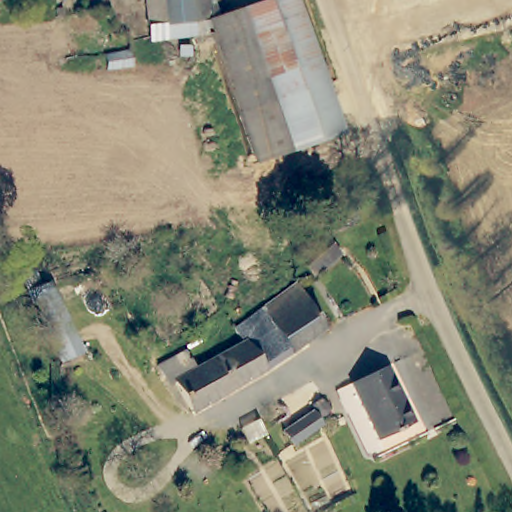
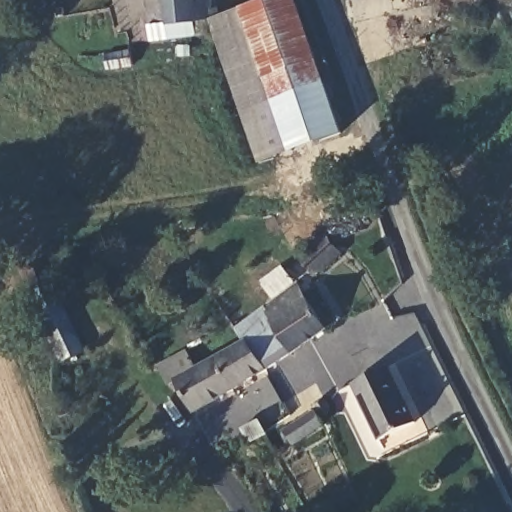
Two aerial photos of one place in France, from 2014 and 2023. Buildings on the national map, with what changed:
unchanged [(210,14),(194,16),(195,34),(152,38),(147,0),(209,0),(210,14)]
unchanged [(260,0),(294,0),(343,132),(296,150),(245,5),(260,0)]
unchanged [(296,150),(262,162),(233,85),(209,16),(245,5),(296,150)]
unchanged [(137,64),(113,65),(111,50),(136,50),(137,64)]
unchanged [(302,255),(330,234),(342,252),(314,272),(302,255)]
unchanged [(265,306),(299,286),(325,331),(294,351),(265,306)]
unchanged [(69,364),(43,315),(61,305),(89,353),(69,364)]
unchanged [(262,371),(241,340),(231,327),(265,306),(294,351),(262,371)]
unchanged [(177,382),(170,386),(159,370),(185,352),(197,369),(241,340),(262,371),(197,412),(177,382)]
unchanged [(418,425),(383,442),(354,384),(391,367),(418,425)]
unchanged [(332,401),(330,406),(324,409),(321,408),(318,401),(327,394),(332,401)]
unchanged [(329,424),(300,445),(290,431),(319,410),(329,424)]

